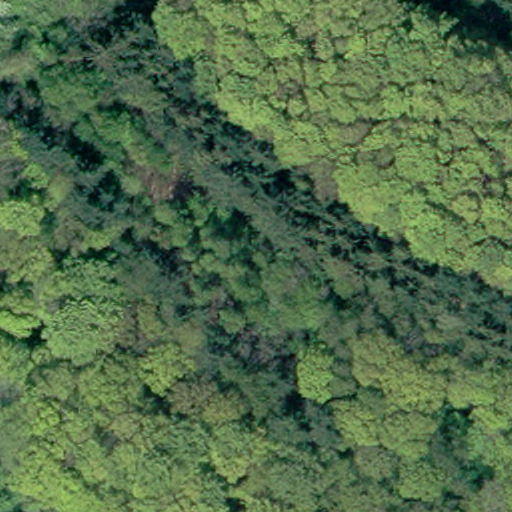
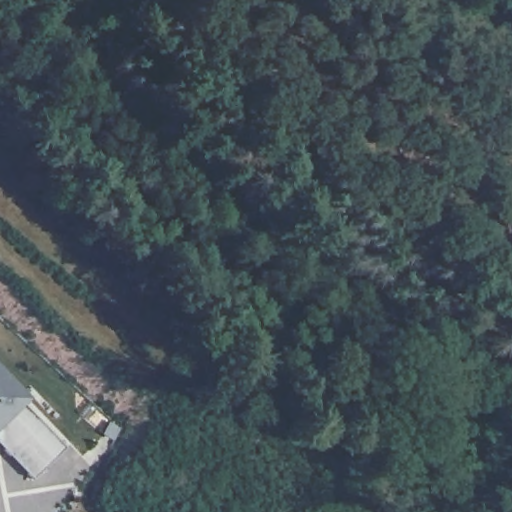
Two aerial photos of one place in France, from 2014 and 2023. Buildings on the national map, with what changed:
new [(25,401),(66,447),(33,479),(0,444),(0,366),(30,395),(25,401)]

